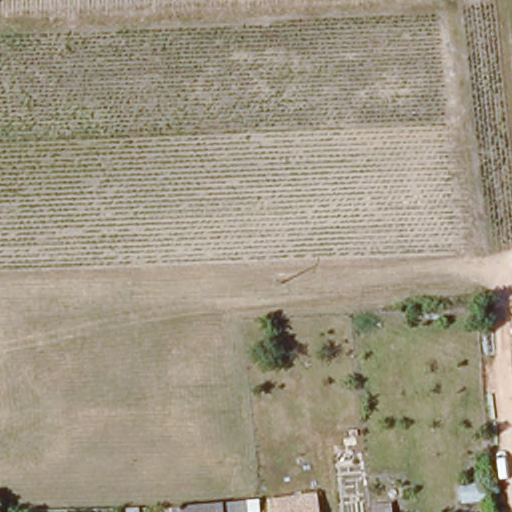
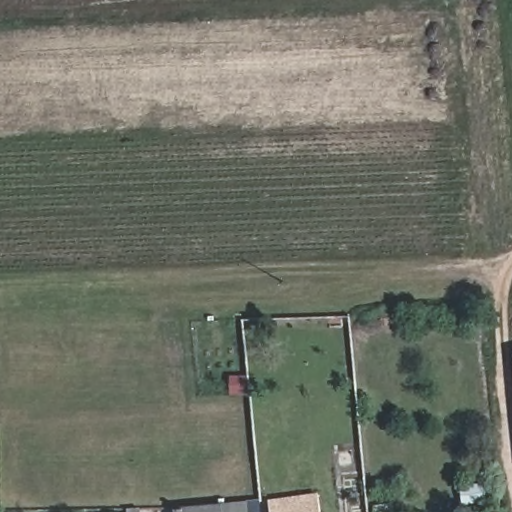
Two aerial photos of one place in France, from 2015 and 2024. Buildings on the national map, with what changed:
unchanged [(268,503),(317,496),(319,512),(270,512),(268,503)]
unchanged [(222,501),(247,499),(248,512),(174,512),(174,504),(222,501)]

